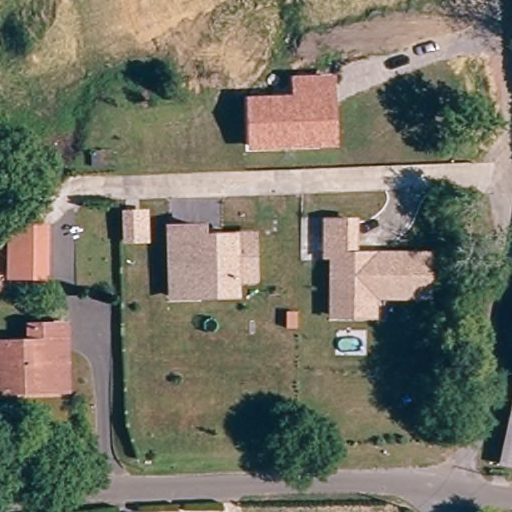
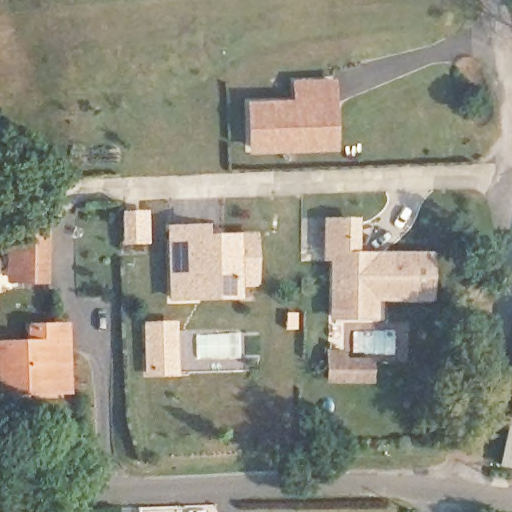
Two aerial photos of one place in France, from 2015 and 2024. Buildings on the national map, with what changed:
unchanged [(292,95),(291,76),(333,75),(338,147),(248,151),(246,97),(292,95)]
unchanged [(357,311),(336,311),(335,252),(328,252),(327,216),(356,215),(356,250),(431,248),(431,289),(377,290),(377,310),(357,311)]
unchanged [(144,224),(146,249),(125,250),(124,225),(144,224)]
unchanged [(10,227),(43,227),(43,279),(10,279),(10,227)]
unchanged [(199,305),(175,306),(172,237),(204,236),(205,245),(254,243),(256,287),(238,288),(239,303),(199,305)]
new [(178,321),(180,376),(143,377),(141,322),(178,321)]
unchanged [(10,389),(0,390),(0,347),(30,346),(29,329),(63,327),(64,343),(67,393),(57,394),(32,395),(10,396),(10,389)]
new [(347,350),(347,359),(374,359),(374,385),(327,385),(327,350),(347,350)]
unchanged [(512,422),(512,461),(504,459),(512,422)]

